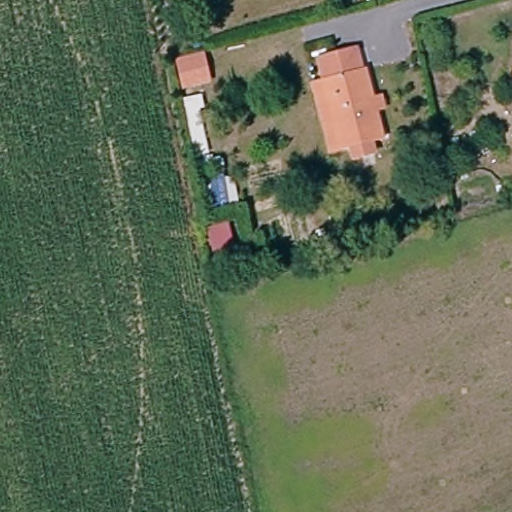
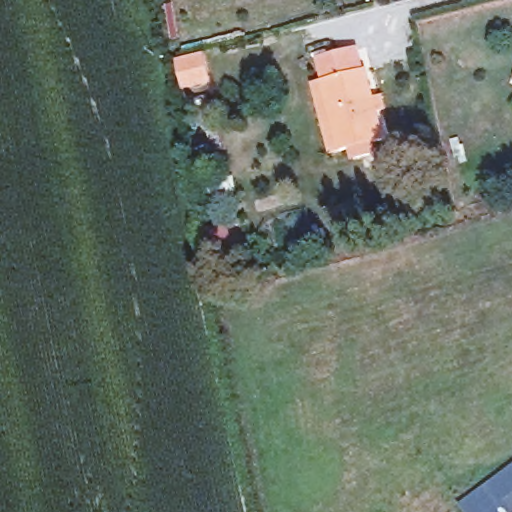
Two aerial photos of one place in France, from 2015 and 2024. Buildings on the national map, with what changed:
unchanged [(381,142),(341,153),(320,64),(360,53),(381,142)]
new [(512,512),(460,512),(455,505),(512,462),(512,512)]

